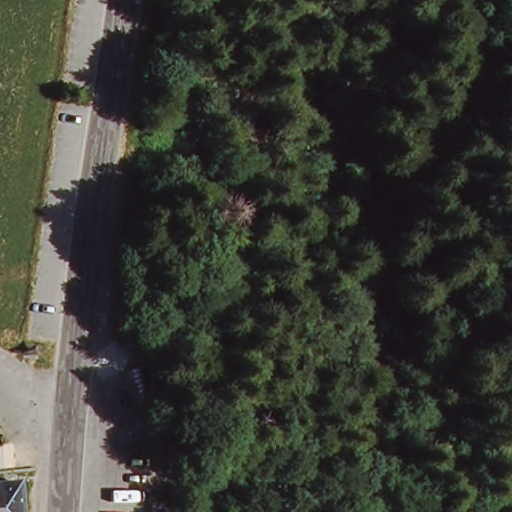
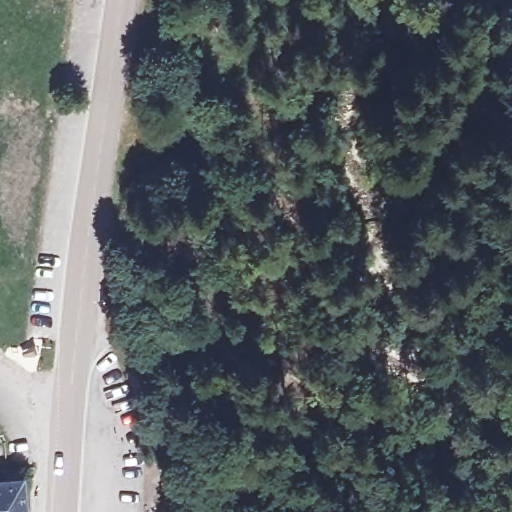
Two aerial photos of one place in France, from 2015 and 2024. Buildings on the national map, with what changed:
unchanged [(15,475),(19,512),(0,512),(0,476),(15,475)]

